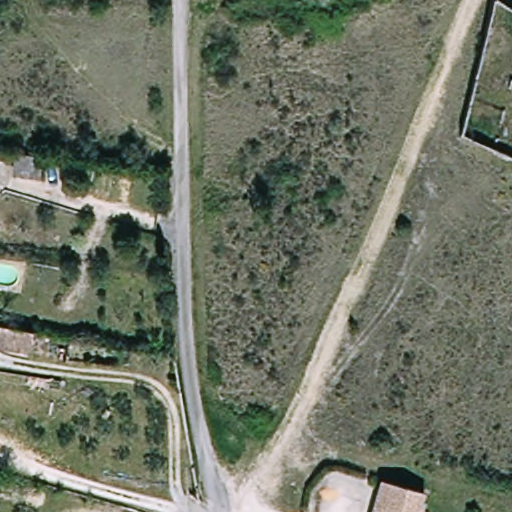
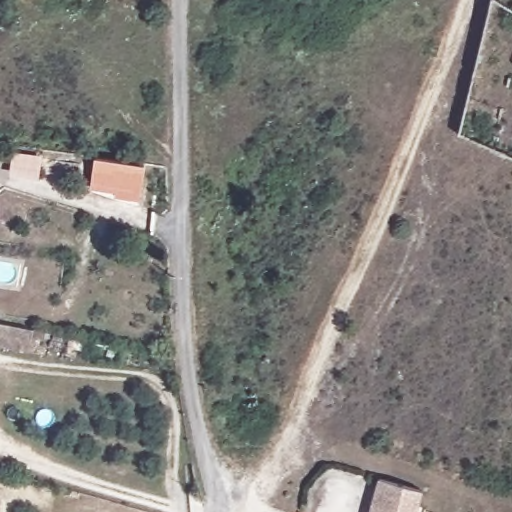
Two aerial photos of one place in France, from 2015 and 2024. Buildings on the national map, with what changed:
new [(147,168),(141,202),(116,199),(118,191),(93,187),(98,160),(147,168)]
unchanged [(27,352),(0,347),(0,326),(32,332),(27,352)]
unchanged [(417,512),(373,512),(387,477),(425,491),(417,512)]

